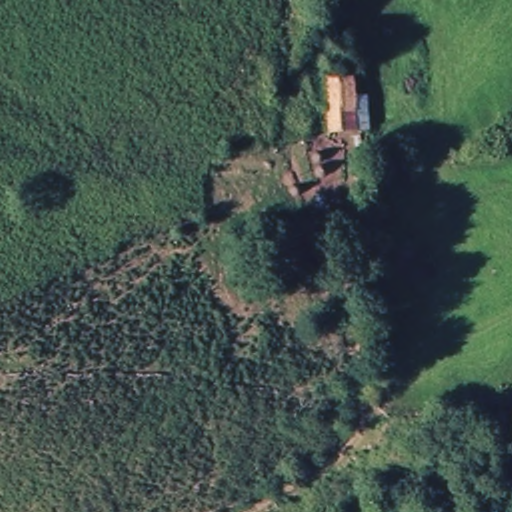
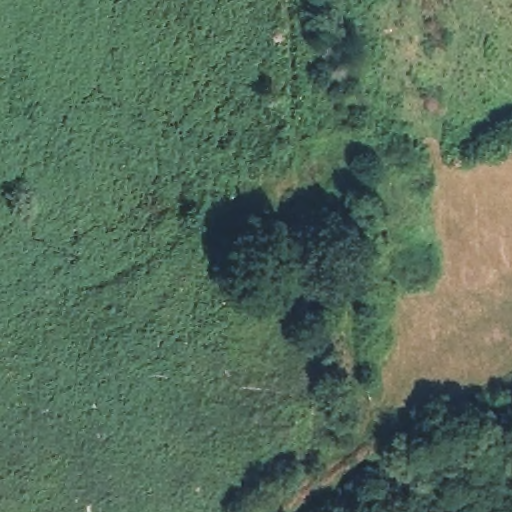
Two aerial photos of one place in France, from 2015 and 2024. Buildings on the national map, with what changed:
unchanged [(363,132),(337,139),(325,86),(352,81),(363,132)]

